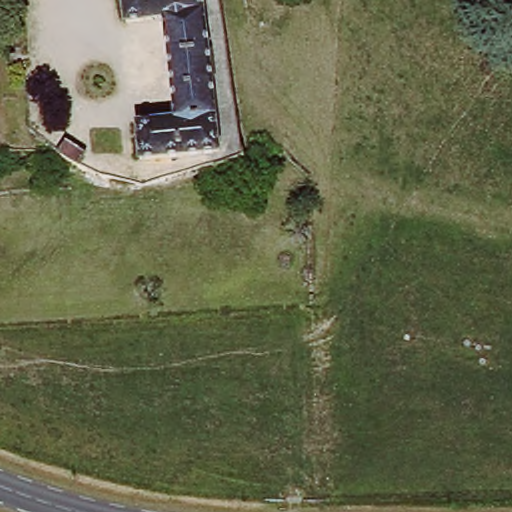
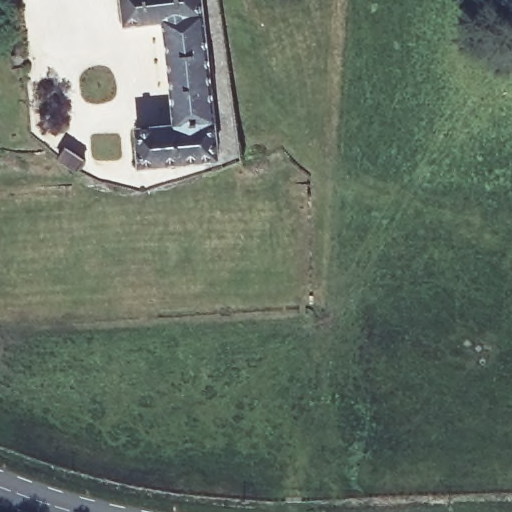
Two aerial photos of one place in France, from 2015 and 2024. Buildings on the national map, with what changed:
unchanged [(217,160),(142,169),(137,131),(177,126),(165,28),(125,31),(123,0),(199,0),(217,160)]
unchanged [(58,166),(62,150),(84,157),(79,173),(58,166)]

